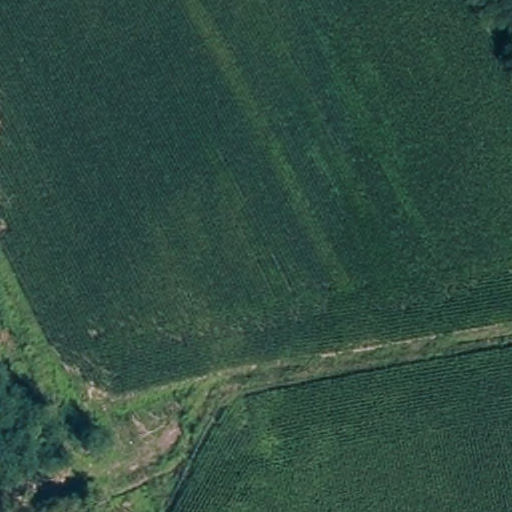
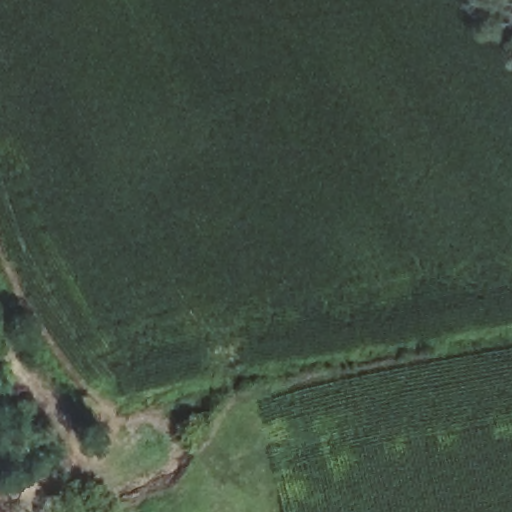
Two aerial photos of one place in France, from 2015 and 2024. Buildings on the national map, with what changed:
[]

